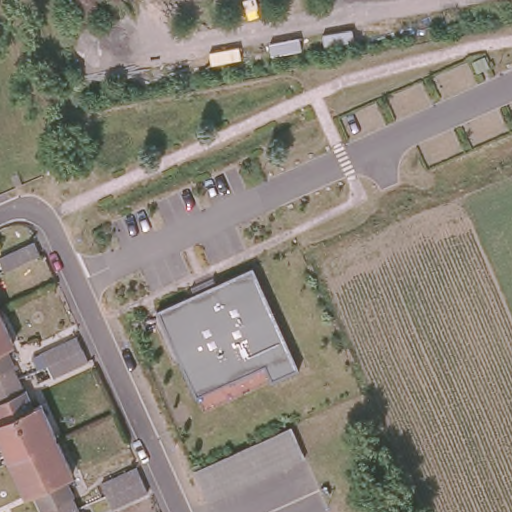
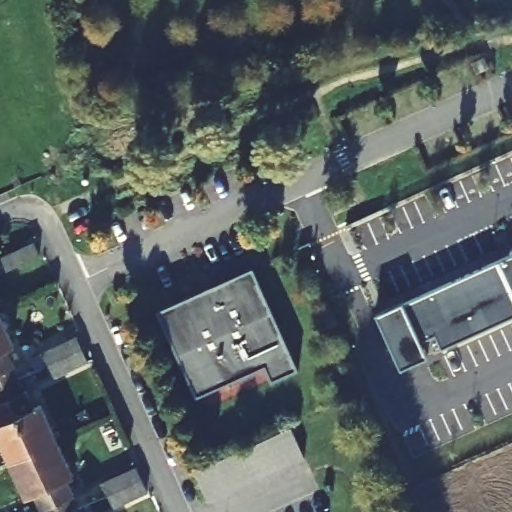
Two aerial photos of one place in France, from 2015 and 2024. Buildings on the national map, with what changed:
unchanged [(31,256),(1,269),(0,268),(0,253),(26,242),(31,256)]
new [(442,345),(435,332),(417,340),(424,356),(399,368),(374,316),(507,252),(505,249),(512,242),(512,312),(442,345)]
unchanged [(249,268),(292,364),(264,377),(257,361),(194,390),(156,311),(249,268)]
unchanged [(8,349),(22,379),(8,386),(0,368),(0,314),(15,346),(8,349)]
unchanged [(49,373),(44,362),(39,351),(69,338),(73,348),(79,361),(49,373)]
unchanged [(0,389),(0,368),(8,386),(0,389)]
unchanged [(22,379),(37,410),(44,407),(60,441),(38,451),(8,386),(22,379)]
unchanged [(11,463),(0,440),(0,389),(8,386),(38,451),(11,463)]
unchanged [(291,426),(303,456),(206,500),(194,471),(291,426)]
unchanged [(82,508),(75,512),(65,512),(38,451),(60,441),(76,477),(84,493),(77,497),(82,508)]
unchanged [(42,512),(35,496),(27,500),(11,463),(38,451),(65,512),(42,512)]
unchanged [(111,506),(104,492),(100,482),(131,468),(136,477),(142,491),(111,506)]
unchanged [(84,512),(75,512),(82,508),(84,512)]

